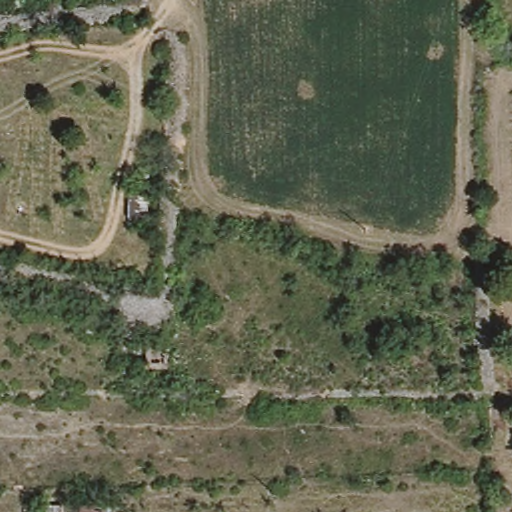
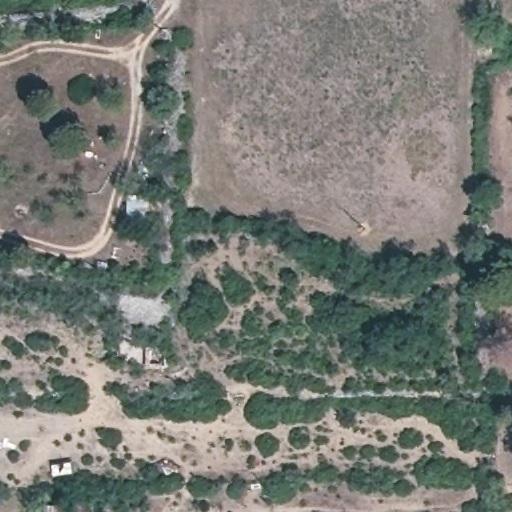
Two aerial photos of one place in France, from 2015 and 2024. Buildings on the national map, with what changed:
unchanged [(169,348),(168,368),(148,367),(148,347),(169,348)]

